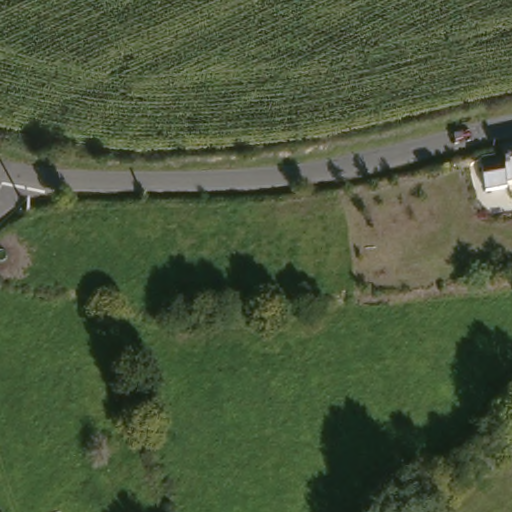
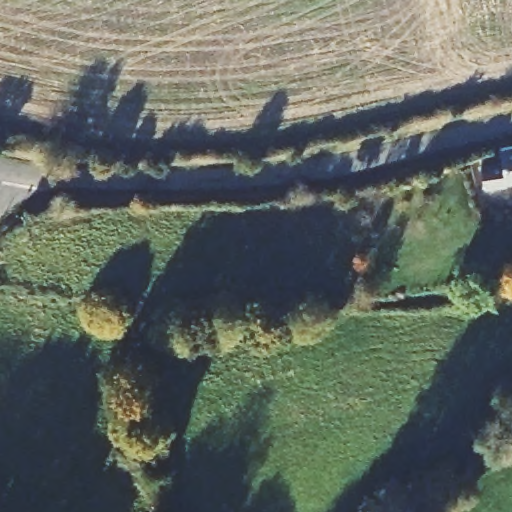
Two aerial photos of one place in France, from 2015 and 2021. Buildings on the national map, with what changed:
unchanged [(485,166),(505,163),(504,154),(512,152),(512,187),(509,188),(489,190),(485,166)]

